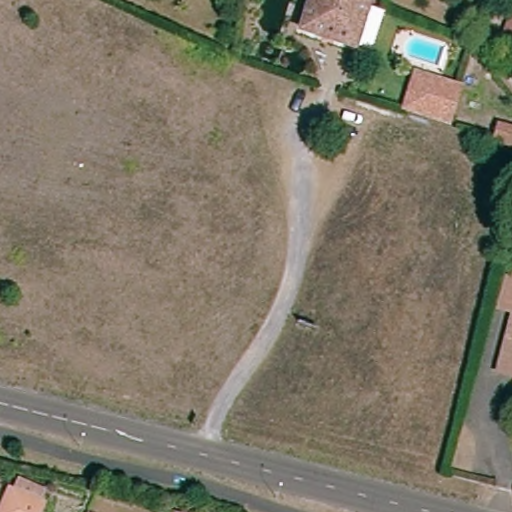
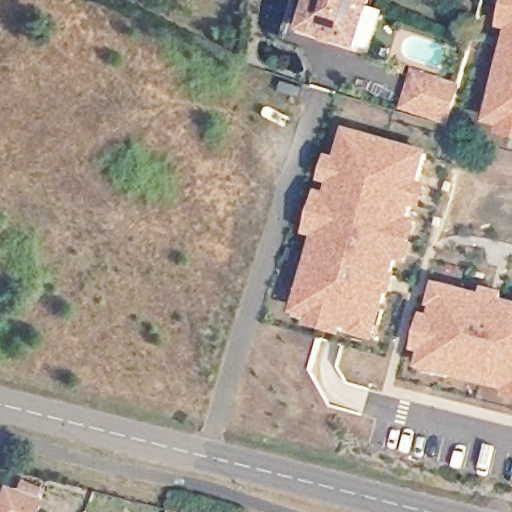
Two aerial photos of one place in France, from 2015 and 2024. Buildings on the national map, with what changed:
unchanged [(302,32),(312,0),(341,0),(369,9),(356,50),(302,32)]
unchanged [(372,0),(369,9),(341,0),(372,0)]
demolished [(512,22),(512,35),(508,34),(512,22)]
new [(512,57),(512,111),(499,108),(512,57)]
unchanged [(461,86),(453,109),(450,119),(407,105),(411,95),(418,72),(461,86)]
new [(512,111),(512,122),(492,117),(499,90),(504,91),(499,108),(512,111)]
demolished [(504,107),(512,110),(512,141),(495,137),(500,122),(504,107)]
new [(512,130),(510,130),(512,122),(512,129),(512,130)]
new [(349,322),(347,328),(346,327),(320,319),(320,320),(318,320),(323,302),(308,297),(327,234),(327,232),(332,234),(341,200),(337,198),(337,197),(342,179),(347,181),(352,164),(347,162),(355,132),(432,154),(423,185),(418,183),(413,200),(418,202),(413,221),(408,219),(403,237),(398,254),(403,255),(384,322),(388,307),(393,308),(384,337),(361,331),(362,326),(366,327),(349,322)]
new [(347,181),(342,179),(342,180),(335,178),(340,159),(347,161),(347,162),(352,164),(347,181)]
new [(425,205),(418,202),(413,200),(418,183),(423,185),(423,184),(430,186),(425,205)]
new [(327,232),(327,234),(320,232),(325,213),(330,195),(337,197),(337,198),(341,200),(337,217),(332,234),(327,232)]
new [(402,256),(403,255),(398,254),(403,237),(408,219),(413,221),(413,220),(420,222),(415,240),(409,258),(402,256)]
demolished [(512,267),(512,312),(502,309),(512,267)]
new [(460,288),(456,303),(446,301),(444,307),(440,306),(447,280),(475,287),(474,292),(460,288)]
new [(301,306),(308,282),(312,283),(308,297),(323,302),(321,311),(301,306)]
new [(457,375),(430,367),(435,347),(446,351),(428,346),(428,345),(429,345),(436,317),(435,317),(435,316),(441,318),(446,301),(456,303),(460,288),(512,302),(512,384),(458,371),(457,375)]
demolished [(512,373),(500,370),(512,320),(512,373)]
unchanged [(8,495),(40,508),(38,512),(1,512),(8,495)]

